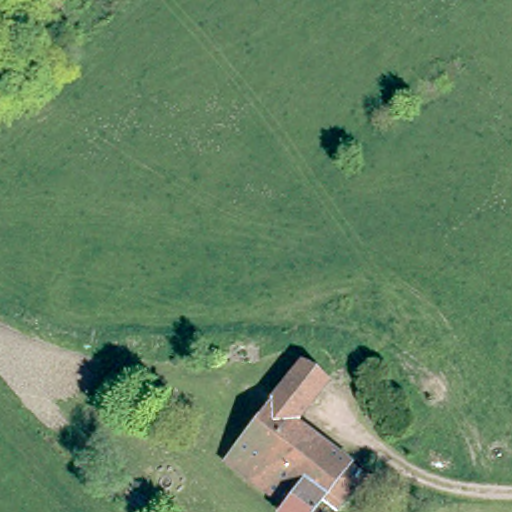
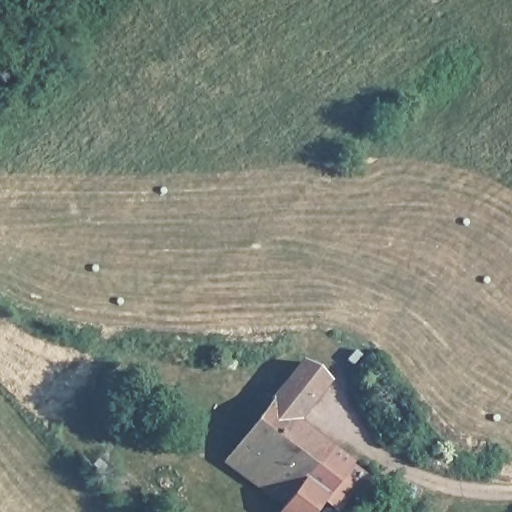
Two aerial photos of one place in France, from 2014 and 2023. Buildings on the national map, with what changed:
unchanged [(270,402),(302,358),(326,374),(293,417),(270,402)]
unchanged [(227,460),(270,402),(293,417),(370,474),(342,510),(326,501),(319,512),(283,512),(285,510),(288,505),(227,460)]

